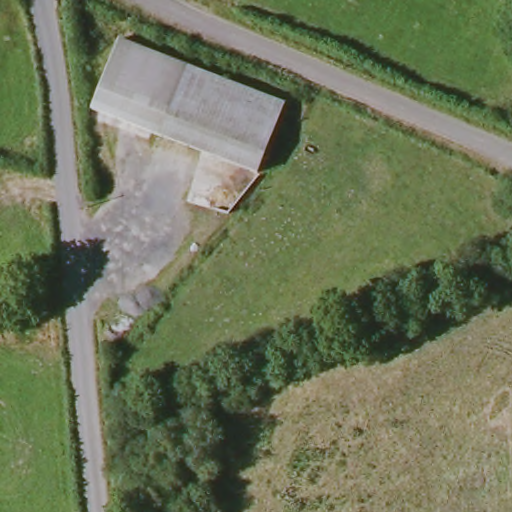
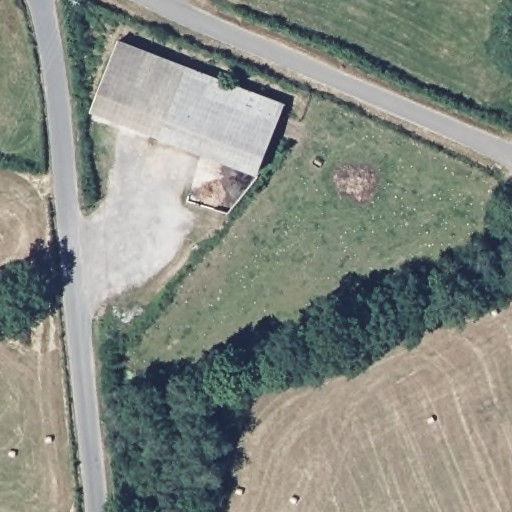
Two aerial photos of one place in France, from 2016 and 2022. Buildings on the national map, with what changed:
unchanged [(154,134),(93,112),(121,41),(182,65),(154,134)]
unchanged [(182,65),(283,104),(267,150),(257,175),(154,134),(182,65)]

